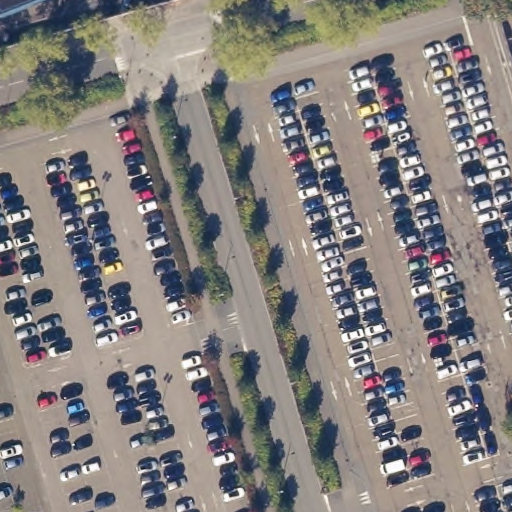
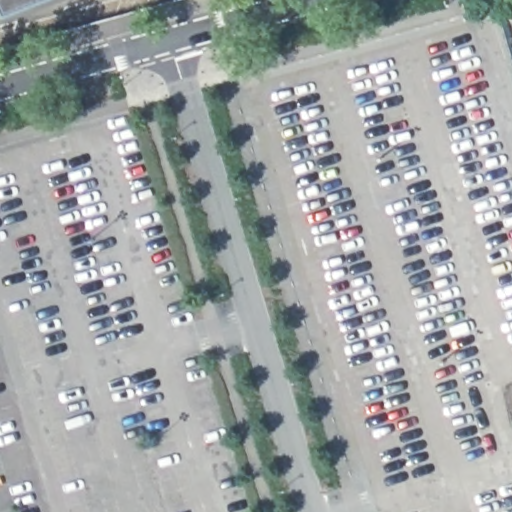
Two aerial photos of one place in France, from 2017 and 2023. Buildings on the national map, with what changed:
unchanged [(11,16),(3,0),(49,0),(11,16)]

